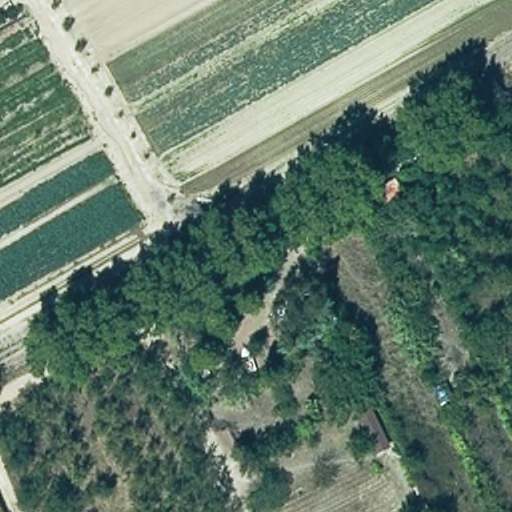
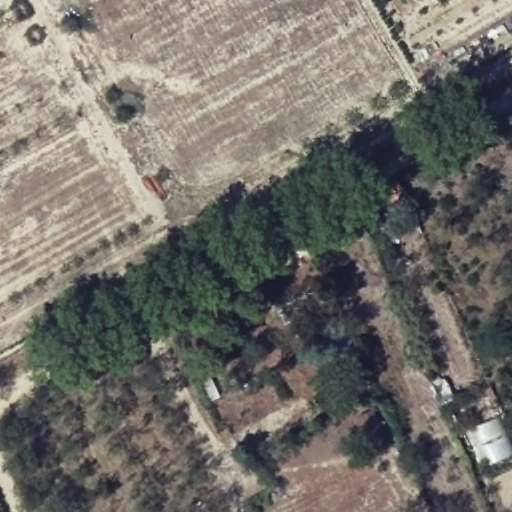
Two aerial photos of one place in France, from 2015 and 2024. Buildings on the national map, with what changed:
unchanged [(508,112),(512,110),(512,121),(508,112)]
unchanged [(406,198),(383,209),(377,192),(396,181),(406,198)]
unchanged [(392,445),(377,453),(356,410),(372,403),(392,445)]

